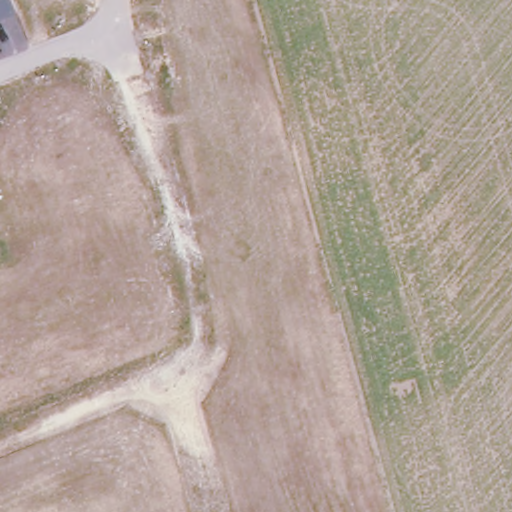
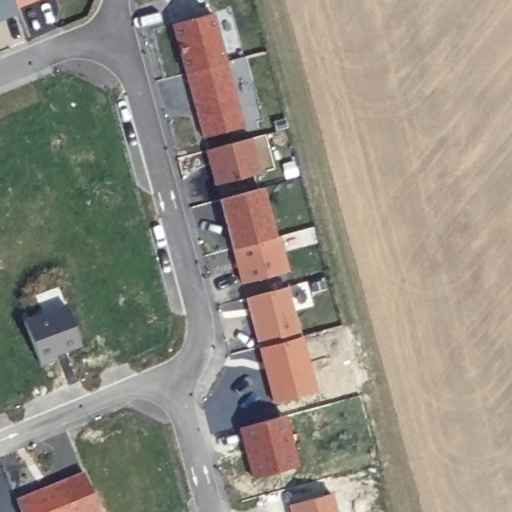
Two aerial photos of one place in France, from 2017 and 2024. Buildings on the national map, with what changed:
unchanged [(0,0),(12,0),(18,15),(0,21),(0,0)]
new [(16,10),(12,0),(39,0),(16,10)]
new [(212,8),(225,56),(185,67),(172,18),(212,8)]
new [(245,121),(202,132),(185,67),(225,56),(245,121)]
new [(250,133),(258,167),(215,179),(205,144),(250,133)]
new [(260,184),(273,232),(232,243),(218,194),(260,184)]
new [(273,232),(278,230),(287,265),(241,277),(232,243),(273,232)]
new [(286,281),(300,331),(259,342),(245,293),(286,281)]
new [(25,321),(67,305),(82,347),(55,357),(57,361),(42,367),(25,321)]
new [(300,331),(302,336),(303,336),(317,393),(274,404),(259,348),(260,348),(259,342),(300,331)]
new [(300,466),(254,479),(239,429),(286,416),(300,466)]
new [(83,471),(100,512),(22,512),(16,498),(83,471)]
new [(291,512),(289,505),(333,493),(338,512),(291,512)]

